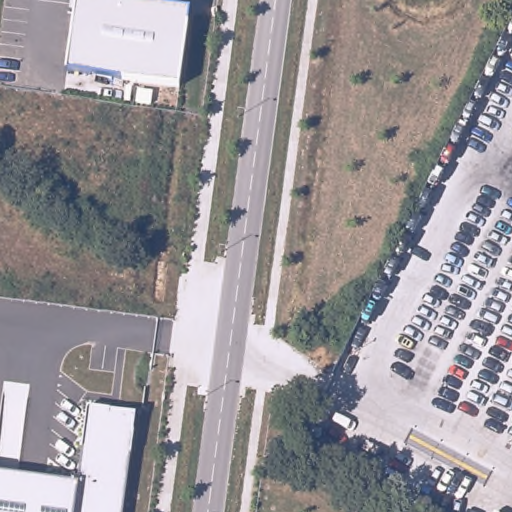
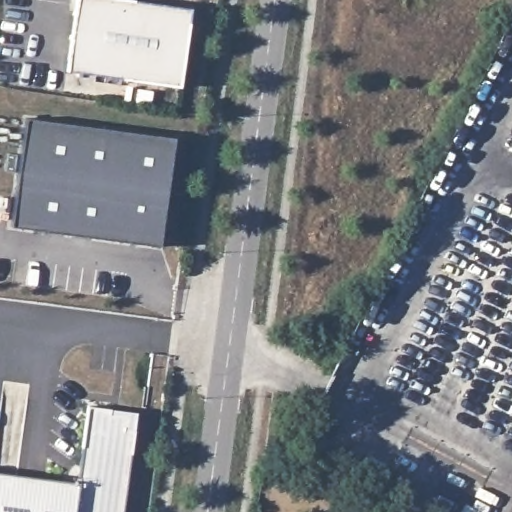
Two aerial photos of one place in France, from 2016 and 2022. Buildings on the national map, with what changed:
unchanged [(179,86),(67,71),(76,0),(130,0),(191,9),(179,86)]
new [(173,138),(160,246),(11,228),(25,118),(173,138)]
unchanged [(87,406),(137,413),(122,512),(0,512),(0,472),(78,483),(87,406)]

